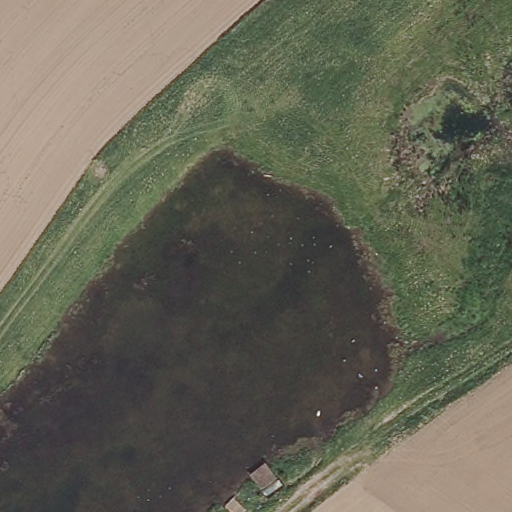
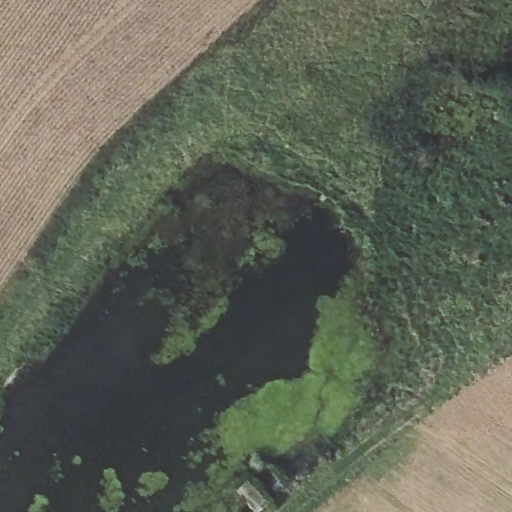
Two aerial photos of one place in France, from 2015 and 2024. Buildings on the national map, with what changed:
unchanged [(262,457),(275,477),(261,487),(254,478),(247,467),(262,457)]

